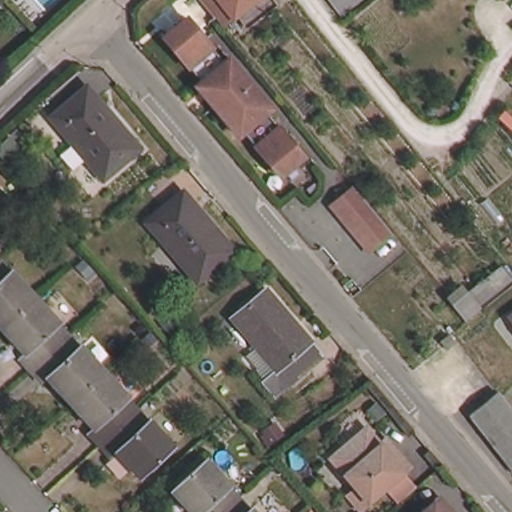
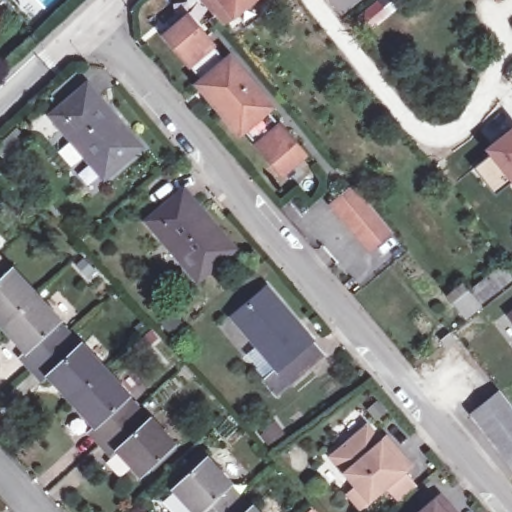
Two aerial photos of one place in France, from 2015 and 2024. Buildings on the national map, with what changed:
unchanged [(250,24),(240,12),(235,15),(223,0),(278,0),(279,1),(250,24)]
unchanged [(276,176),(239,132),(235,136),(192,86),(197,82),(160,38),(183,19),(220,63),(225,59),(267,109),(262,113),(300,157),(276,176)]
unchanged [(112,185),(57,121),(93,90),(147,154),(112,185)]
new [(490,185),(476,169),(494,155),(491,150),(512,134),(512,185),(498,196),(490,185)]
unchanged [(382,216),(393,229),(370,248),(331,201),(355,182),(382,216)]
unchanged [(245,257),(210,287),(160,228),(195,198),(245,257)]
unchanged [(0,264),(0,260),(2,262),(0,264)]
unchanged [(0,320),(0,264),(2,262),(13,275),(16,272),(40,297),(7,327),(0,320)]
unchanged [(482,304),(483,305),(466,318),(455,305),(505,265),(512,274),(512,280),(482,304)]
unchanged [(269,382),(282,371),(235,315),(268,286),(327,356),(293,383),(280,395),(269,382)]
unchanged [(25,359),(31,354),(7,327),(40,297),(66,324),(63,328),(71,336),(35,370),(25,359)]
unchanged [(511,315),(512,315),(512,316),(511,315)]
unchanged [(440,343),(450,335),(457,344),(448,352),(443,347),(440,343)]
unchanged [(76,401),(53,377),(47,382),(35,370),(71,336),(82,348),(85,345),(110,371),(76,401)]
unchanged [(135,399),(132,402),(141,412),(105,445),(95,434),(101,428),(76,401),(110,371),(135,399)]
unchanged [(512,408),(512,470),(471,417),(500,394),(512,408)]
unchanged [(151,422),(155,419),(178,445),(146,476),(124,452),(117,458),(105,445),(141,412),(151,422)]
unchanged [(400,501),(386,485),(365,503),(352,489),(356,486),(330,455),(365,425),(380,441),(386,436),(398,450),(411,464),(405,469),(418,484),(400,501)]
unchanged [(236,512),(191,512),(179,498),(213,467),(236,491),(233,494),(243,505),(236,512)]
unchanged [(447,498),(458,512),(432,512),(447,498)]
unchanged [(250,512),(236,512),(243,505),(250,512)]

